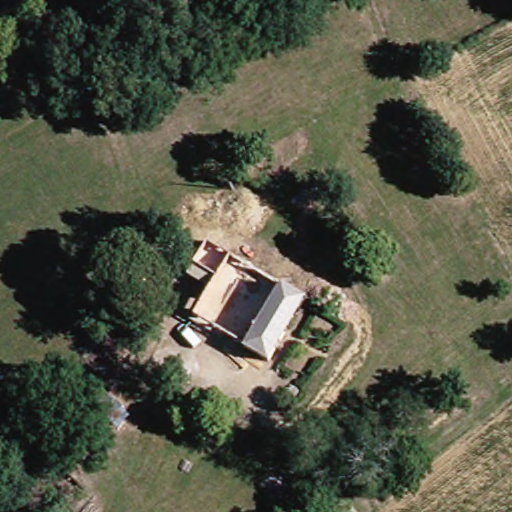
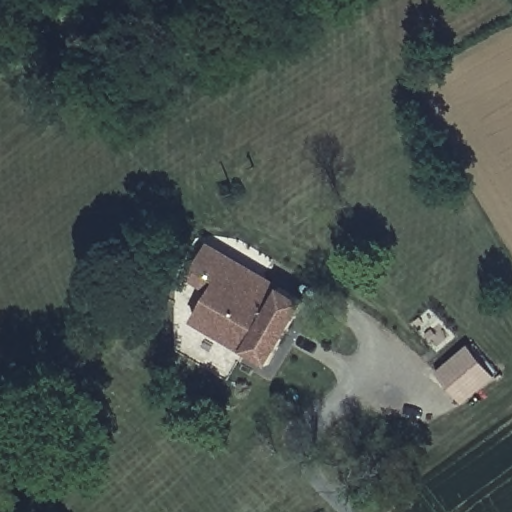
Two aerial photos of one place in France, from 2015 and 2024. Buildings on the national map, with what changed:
unchanged [(181,319),(214,258),(234,268),(202,330),(181,319)]
unchanged [(234,268),(310,307),(276,370),(202,330),(234,268)]
new [(470,346),(495,376),(463,403),(437,372),(470,346)]

